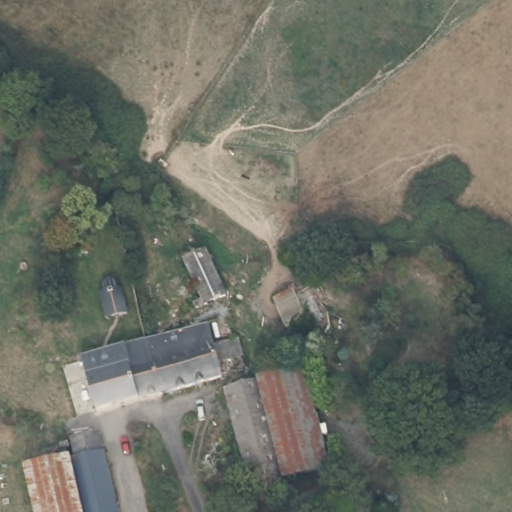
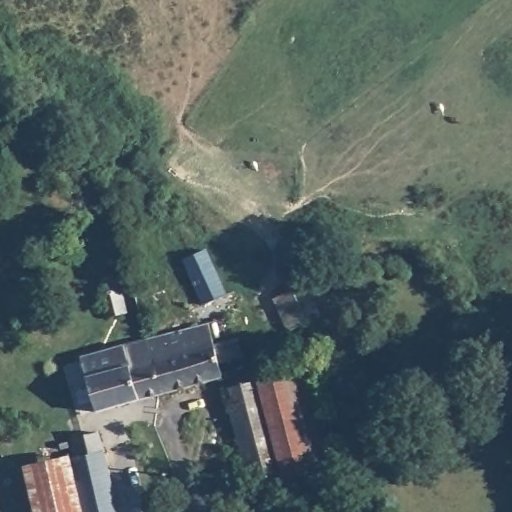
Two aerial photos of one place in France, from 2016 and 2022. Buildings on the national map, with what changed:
unchanged [(223,298),(204,308),(180,262),(202,249),(223,298)]
unchanged [(113,273),(124,310),(107,311),(102,276),(113,273)]
unchanged [(314,310),(309,313),(336,377),(312,388),(280,303),(306,294),(314,310)]
unchanged [(39,298),(49,343),(25,350),(15,302),(39,298)]
unchanged [(197,330),(216,326),(222,343),(226,359),(206,364),(210,383),(151,398),(137,346),(197,330)]
unchanged [(45,392),(77,384),(72,364),(137,346),(151,398),(86,414),(80,399),(55,406),(52,400),(46,401),(45,392)]
unchanged [(311,475),(282,483),(257,390),(255,382),(287,375),(300,420),(311,475)]
unchanged [(282,498),(249,504),(222,397),(257,390),(282,483),(282,498)]
unchanged [(115,512),(79,512),(67,459),(64,447),(98,440),(115,512)]
unchanged [(33,512),(23,471),(67,459),(79,512),(33,512)]

